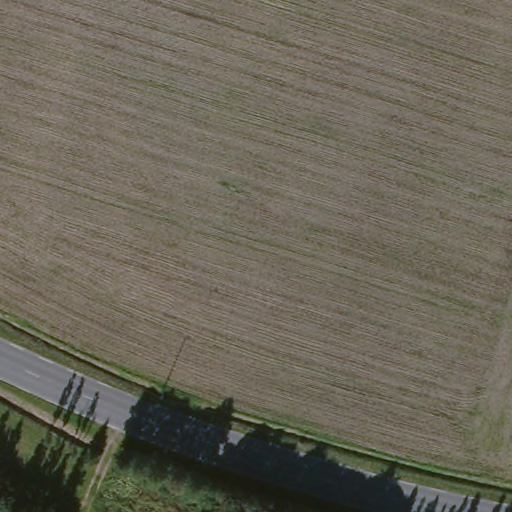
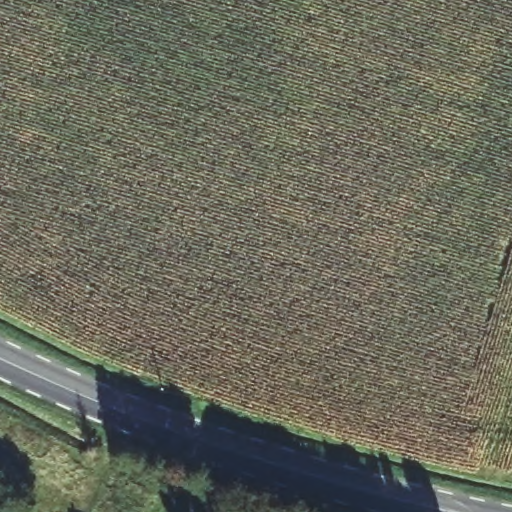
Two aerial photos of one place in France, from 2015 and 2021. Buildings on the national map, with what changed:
[]

